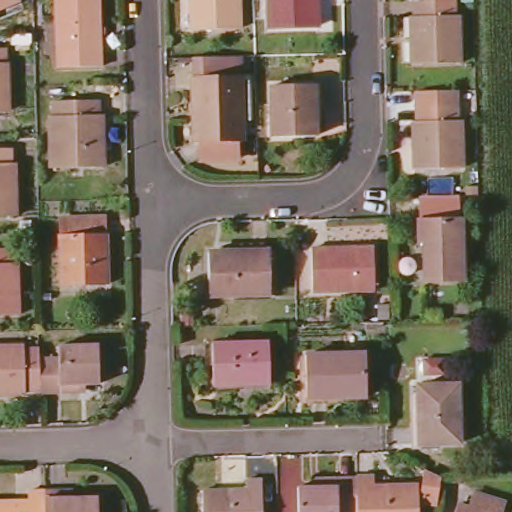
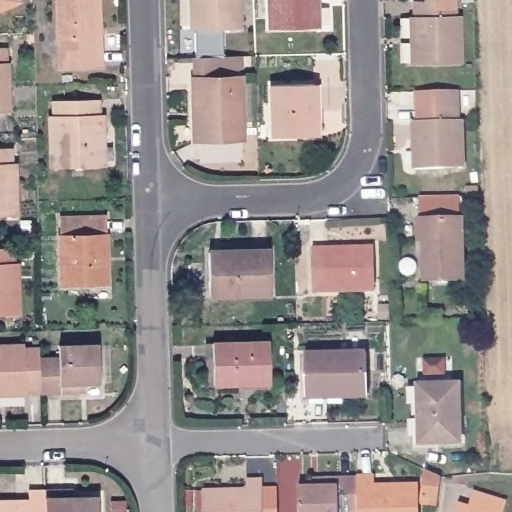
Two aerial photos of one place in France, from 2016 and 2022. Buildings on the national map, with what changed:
unchanged [(19,2),(0,10),(0,0),(18,0),(19,2)]
unchanged [(57,0),(100,0),(102,67),(60,69),(57,0)]
unchanged [(241,30),(193,31),(192,0),(240,0),(241,30)]
unchanged [(318,28),(271,30),(270,0),(317,0),(318,28)]
unchanged [(407,18),(411,18),(411,2),(423,2),(423,0),(451,0),(452,1),(452,17),(455,17),(457,64),(408,66),(407,18)]
unchanged [(6,49),(7,64),(8,65),(10,114),(0,114),(0,49),(6,49)]
unchanged [(202,160),(202,140),(195,140),(193,81),(196,81),(194,59),(241,57),(242,71),(235,71),(235,79),(242,79),(243,139),(237,140),(237,159),(202,160)]
unchanged [(272,87),(315,86),(317,137),(273,138),(272,87)]
unchanged [(52,118),(55,118),(55,102),(100,100),(100,116),(104,116),(105,168),(52,170),(52,118)]
unchanged [(410,133),(414,133),(413,103),(453,102),(454,116),(455,132),(458,131),(459,179),(411,180),(410,133)]
unchanged [(12,150),(12,164),(16,164),(17,218),(0,218),(0,150),(12,150)]
unchanged [(62,220),(107,219),(109,287),(63,288),(62,220)]
unchanged [(425,244),(421,243),(421,223),(462,222),(464,282),(427,283),(425,244)]
unchanged [(14,250),(15,265),(17,265),(18,318),(0,318),(0,250),(14,250)]
unchanged [(312,251),(375,250),(376,292),(313,294),(312,251)]
unchanged [(209,254),(270,252),(272,296),(210,298),(209,254)]
unchanged [(213,345),(270,344),(271,382),(240,383),(240,386),(215,386),(213,345)]
unchanged [(39,361),(40,391),(27,392),(26,396),(0,396),(0,348),(25,347),(25,352),(39,351),(39,361)]
unchanged [(40,391),(39,361),(60,360),(60,349),(100,348),(102,384),(80,385),(80,394),(40,394),(40,391)]
unchanged [(306,356),(367,355),(369,399),(307,401),(306,356)]
unchanged [(420,389),(460,387),(462,445),(422,445),(420,389)]
unchanged [(437,485),(433,511),(417,509),(420,491),(422,478),(435,485),(437,485)]
unchanged [(247,491),(247,481),(263,481),(264,512),(204,512),(203,492),(247,491)]
unchanged [(294,512),(294,495),(312,494),(312,485),(354,484),(354,512),(294,512)]
unchanged [(369,484),(370,497),(396,496),(397,493),(412,493),(412,512),(413,512),(354,512),(354,484),(369,484)]
unchanged [(46,512),(0,512),(0,501),(30,500),(30,487),(45,486),(45,494),(46,512)]
unchanged [(100,495),(100,512),(46,512),(45,494),(100,495)]
unchanged [(504,510),(503,512),(471,512),(475,501),(504,510)]
unchanged [(465,512),(461,512),(461,511),(465,512)]

